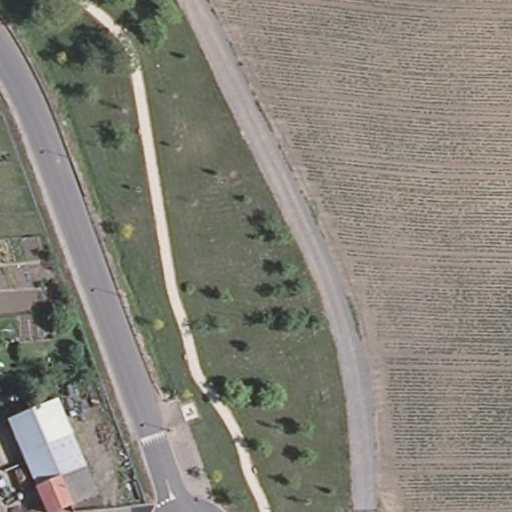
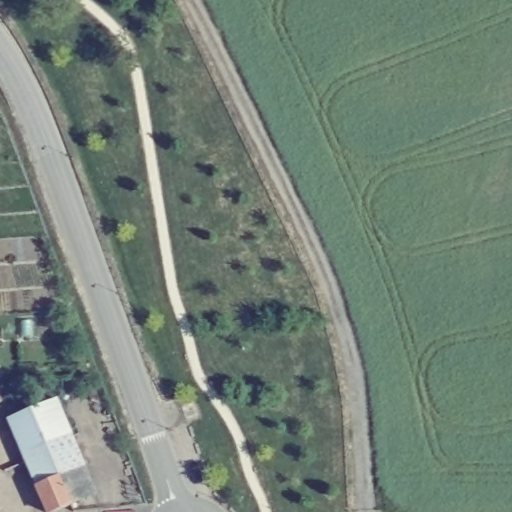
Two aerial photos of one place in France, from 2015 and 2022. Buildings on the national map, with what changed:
unchanged [(63,512),(38,512),(3,422),(56,402),(96,498),(63,512)]

